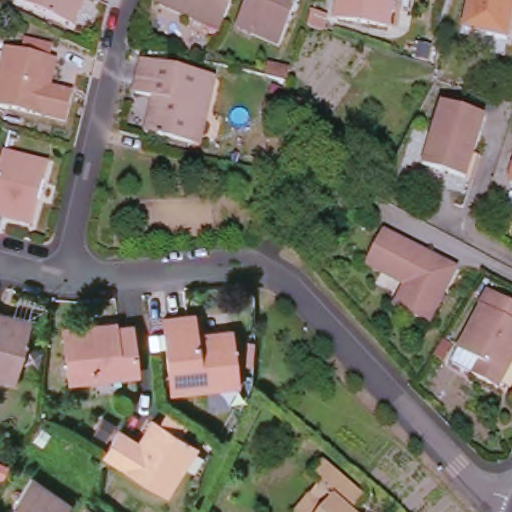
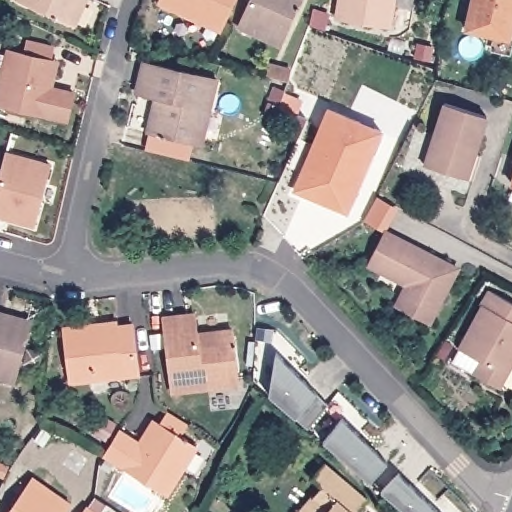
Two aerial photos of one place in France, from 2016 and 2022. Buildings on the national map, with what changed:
unchanged [(85,2),(74,25),(18,0),(82,0),(81,1),(85,2)]
unchanged [(158,4),(160,0),(234,0),(223,24),(220,31),(192,18),(158,4)]
unchanged [(238,27),(251,0),(300,0),(280,45),(238,27)]
unchanged [(337,18),(339,0),(394,0),(390,26),(337,18)]
unchanged [(467,29),(474,0),(512,0),(512,19),(508,38),(467,29)]
unchanged [(73,98),(66,125),(0,109),(0,87),(7,55),(23,58),(26,45),(50,50),(46,64),(52,65),(46,91),(73,98)]
unchanged [(193,143),(148,131),(155,98),(136,93),(143,61),(216,79),(208,115),(201,145),(193,143)]
unchanged [(467,178),(425,165),(444,103),(487,116),(467,178)]
new [(347,216),(292,192),(327,109),(381,131),(347,216)]
unchanged [(34,226),(11,219),(11,215),(0,212),(0,179),(7,153),(50,164),(34,226)]
unchanged [(446,292),(429,324),(395,306),(406,285),(381,272),(367,264),(385,231),(451,265),(458,269),(446,292)]
unchanged [(481,306),(490,291),(512,303),(512,363),(498,388),(475,375),(438,355),(446,342),(459,349),(483,307),(481,306)]
unchanged [(213,387),(177,392),(168,318),(200,314),(202,334),(237,330),(242,378),(244,385),(213,387)]
unchanged [(7,315),(30,321),(15,382),(0,378),(0,316),(6,318),(7,315)]
unchanged [(64,329),(93,325),(93,329),(134,325),(140,374),(70,383),(64,329)]
new [(297,415),(269,392),(276,346),(316,388),(297,415)]
new [(324,441),(343,414),(390,462),(372,480),(324,441)]
unchanged [(143,446),(158,424),(197,448),(168,495),(103,455),(120,431),(143,446)]
unchanged [(356,512),(349,512),(333,502),(335,500),(330,496),(332,493),(312,478),(324,464),(366,502),(356,512)]
new [(383,490),(400,472),(443,512),(407,512),(383,490)]
unchanged [(70,505),(65,512),(10,512),(33,479),(70,505)]
unchanged [(333,502),(349,512),(324,512),(333,502)]
unchanged [(95,512),(84,512),(87,507),(95,512)]

